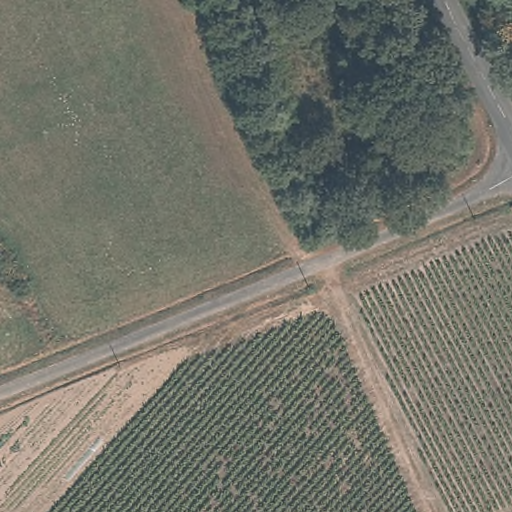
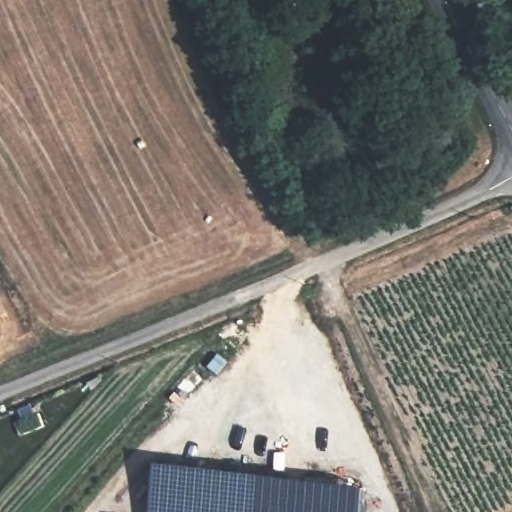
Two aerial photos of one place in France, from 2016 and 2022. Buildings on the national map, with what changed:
new [(157,463),(363,488),(361,512),(151,512),(157,463)]

